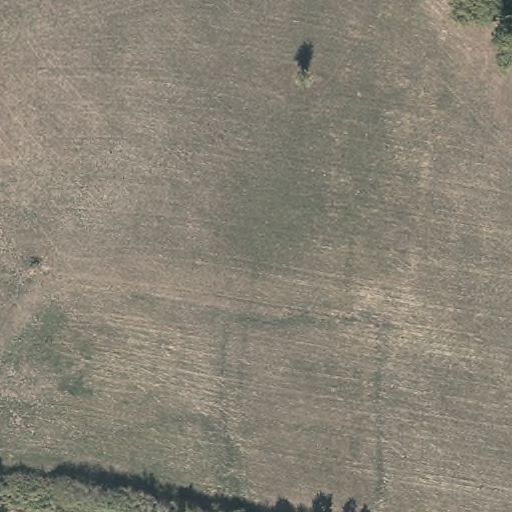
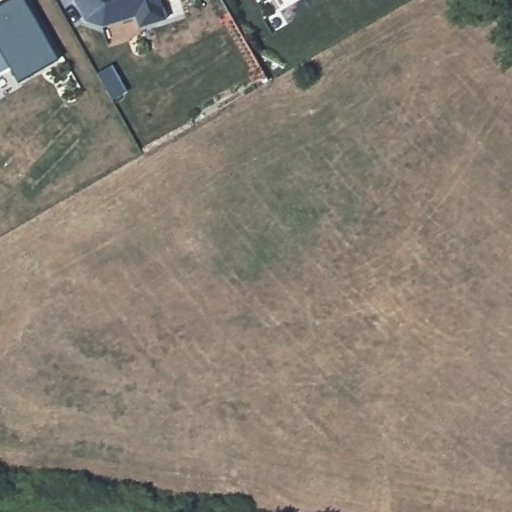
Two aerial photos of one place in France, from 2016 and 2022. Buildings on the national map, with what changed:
new [(18,82),(10,69),(0,74),(0,4),(7,0),(24,0),(58,60),(18,82)]
new [(167,17),(139,27),(135,15),(101,25),(85,20),(75,0),(162,0),(167,17)]
new [(262,1),(261,0),(265,0),(262,1)]

